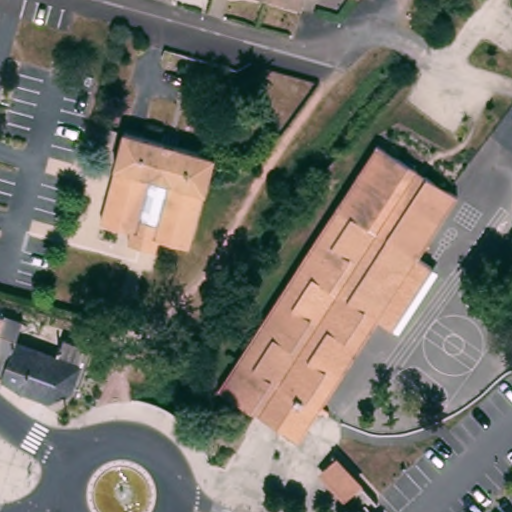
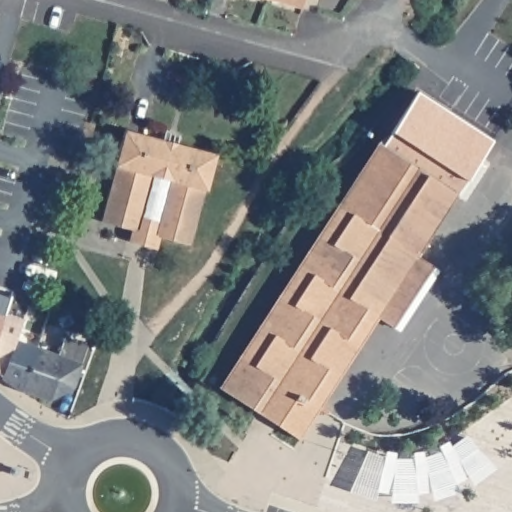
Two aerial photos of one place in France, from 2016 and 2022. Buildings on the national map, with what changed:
unchanged [(273,0),(305,0),(303,8),(273,0)]
new [(493,140),(468,180),(463,190),(387,141),(394,131),(419,91),(493,140)]
unchanged [(137,244),(129,242),(132,230),(109,224),(101,221),(104,214),(116,167),(114,166),(121,142),(124,130),(163,140),(165,132),(179,137),(177,144),(215,155),(207,190),(205,189),(197,220),(192,237),(189,245),(182,243),(159,237),(156,249),(148,246),(137,244)]
unchanged [(224,382),(383,138),(463,190),(423,251),(438,261),(398,322),(384,313),(324,405),(321,409),(304,435),(300,432),(282,420),(264,408),(224,382)]
unchanged [(58,356),(64,337),(87,345),(73,388),(50,399),(21,388),(4,377),(0,375),(0,314),(4,316),(4,315),(5,313),(24,319),(21,327),(36,332),(31,346),(58,356)]

